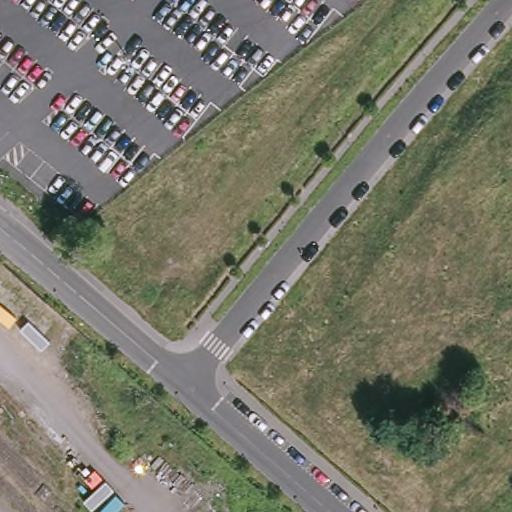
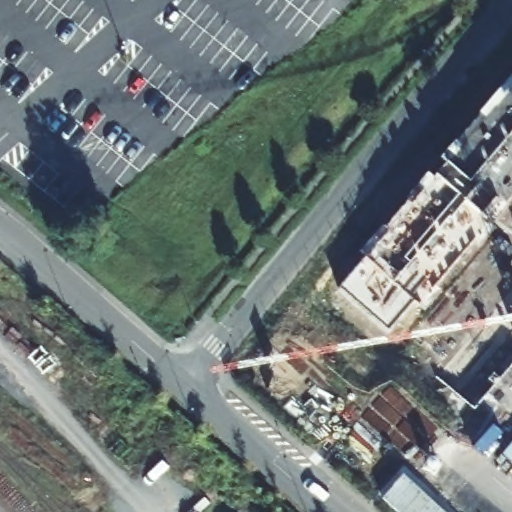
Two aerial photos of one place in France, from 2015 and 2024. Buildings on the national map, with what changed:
new [(494,228),(477,248),(472,242),(435,286),(441,292),(425,311),(411,301),(390,327),(340,286),(365,257),(358,253),(427,173),(434,178),(444,165),(438,160),(512,77),(512,199),(490,225),(494,228)]

